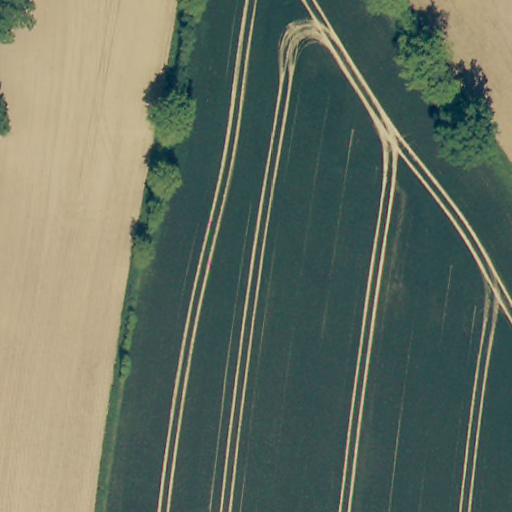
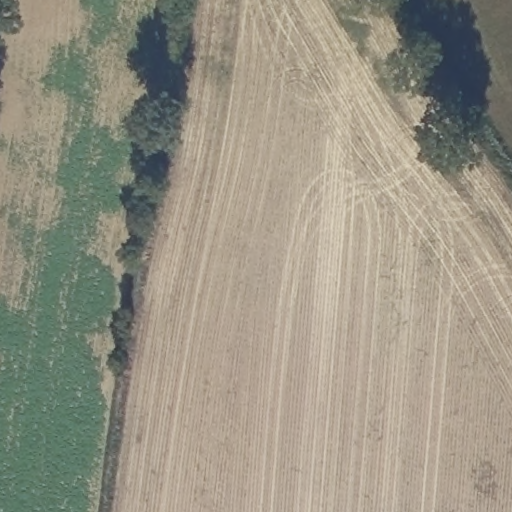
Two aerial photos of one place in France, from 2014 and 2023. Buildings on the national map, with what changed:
[]

